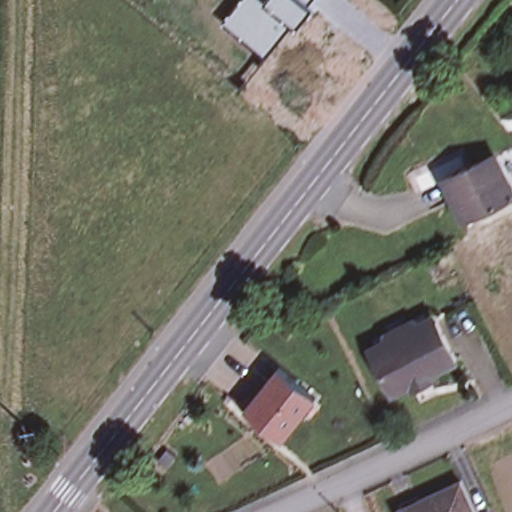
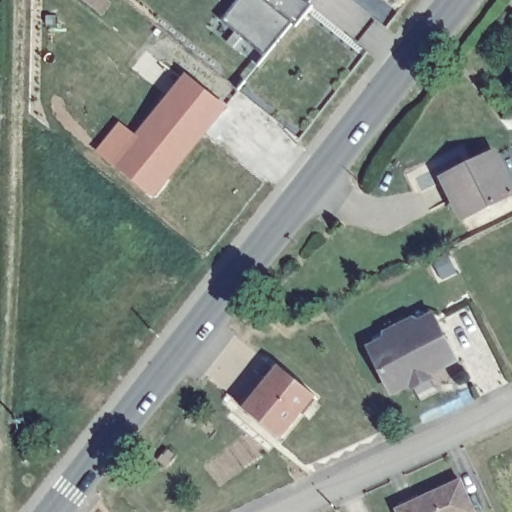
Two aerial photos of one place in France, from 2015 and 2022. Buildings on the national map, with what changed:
unchanged [(309,2),(313,5),(298,25),(294,22),(267,55),(223,21),(241,0),(311,0),(309,2)]
new [(111,165),(186,74),(228,106),(153,198),(111,165)]
unchanged [(443,178),(493,153),(499,166),(512,194),(463,218),(449,191),(443,178)]
unchanged [(422,393),(419,387),(399,397),(385,368),(381,359),(382,359),(384,348),(379,341),(430,317),(433,323),(441,327),(445,328),(449,336),(463,365),(436,379),(438,384),(422,393)]
unchanged [(314,396),(280,439),(258,421),(243,409),(277,366),(311,395),(314,396)]
unchanged [(402,504),(400,500),(428,487),(430,492),(459,478),(476,512),(398,512),(397,507),(402,504)]

